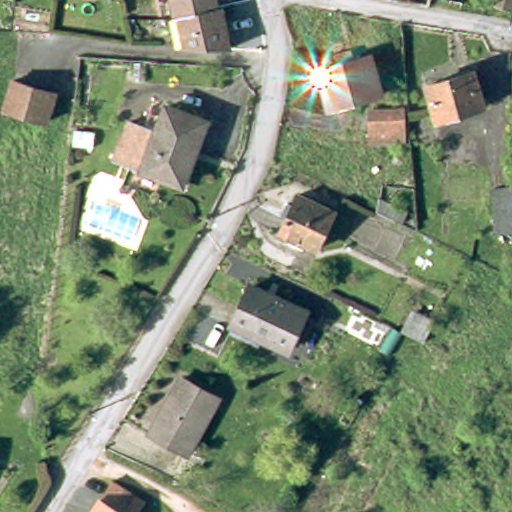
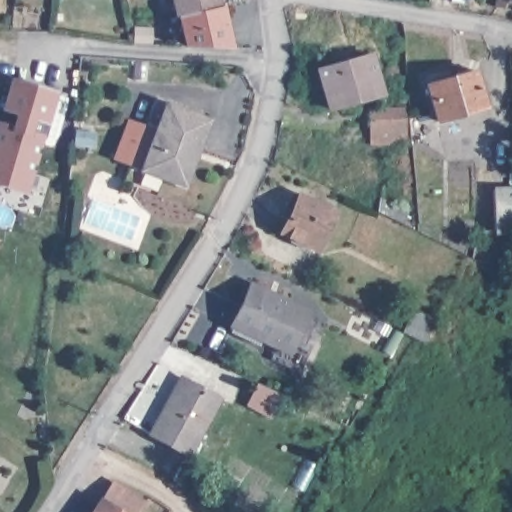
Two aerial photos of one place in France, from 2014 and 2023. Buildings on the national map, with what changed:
unchanged [(185,19),(182,19),(177,0),(220,0),(222,10),(185,19)]
unchanged [(497,7),(499,0),(512,0),(512,6),(511,10),(497,7)]
unchanged [(222,10),(226,9),(236,52),(192,50),(185,19),(222,10)]
unchanged [(340,70),(337,62),(357,56),(359,64),(377,59),(387,98),(335,114),(324,75),(340,70)]
unchanged [(480,76),(490,112),(444,125),(433,89),(480,76)]
unchanged [(19,86),(61,99),(52,127),(9,114),(19,86)]
unchanged [(134,126),(160,136),(170,109),(211,124),(195,168),(191,167),(182,187),(120,162),(134,126)]
unchanged [(406,140),(374,142),(372,111),(404,109),(406,140)]
new [(12,115),(33,121),(31,131),(46,135),(28,192),(0,184),(0,120),(10,124),(12,115)]
unchanged [(494,231),(492,190),(512,187),(512,230),(494,231)]
unchanged [(407,212),(402,223),(378,211),(381,198),(407,212)]
unchanged [(327,254),(291,237),(297,224),(291,221),(299,207),(304,211),(309,200),(345,217),(327,254)]
unchanged [(235,332),(239,323),(256,287),(312,314),(321,318),(309,342),(300,337),(294,350),(267,337),(264,346),(235,332)]
unchanged [(407,334),(402,332),(412,313),(434,323),(425,342),(407,334)]
unchanged [(219,397),(189,453),(151,432),(181,377),(219,397)]
unchanged [(96,496),(107,478),(142,499),(134,512),(85,512),(96,496)]

